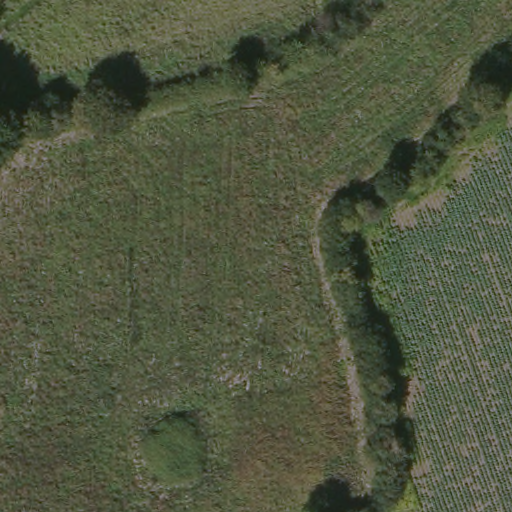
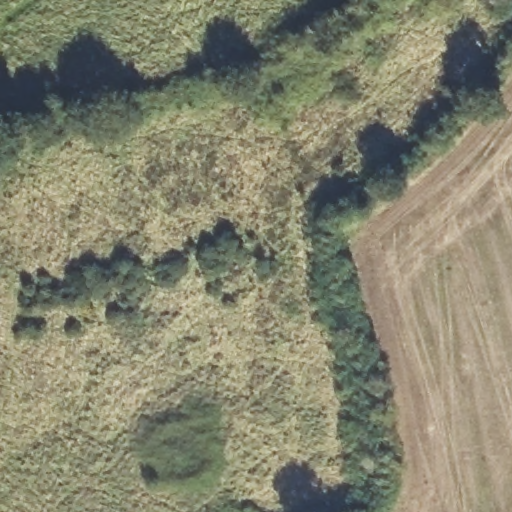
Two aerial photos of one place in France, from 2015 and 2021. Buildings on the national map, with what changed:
[]

